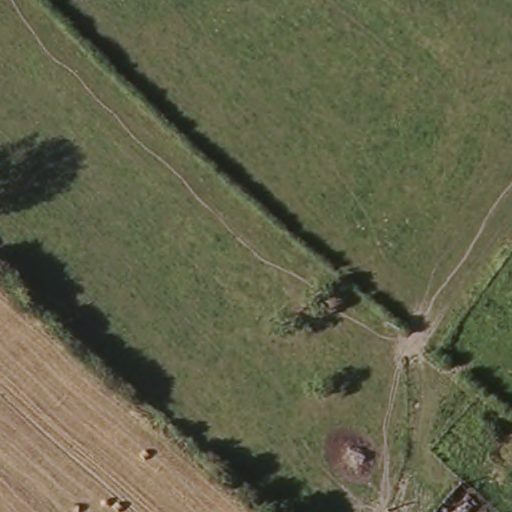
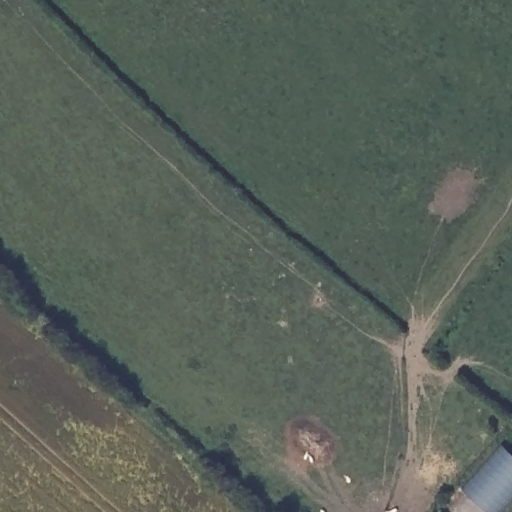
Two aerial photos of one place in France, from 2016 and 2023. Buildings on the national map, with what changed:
new [(506,512),(490,512),(463,489),(502,446),(512,455),(512,505),(506,512)]

